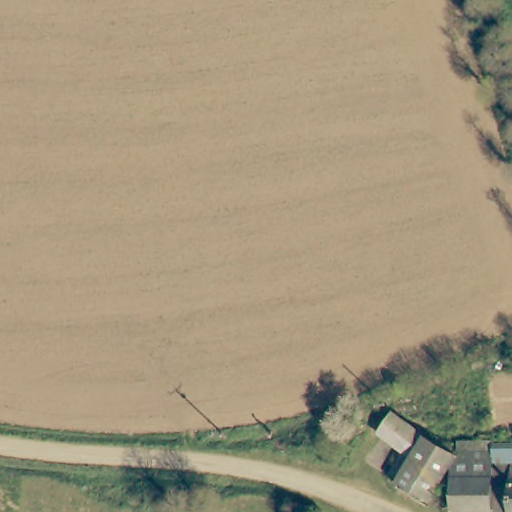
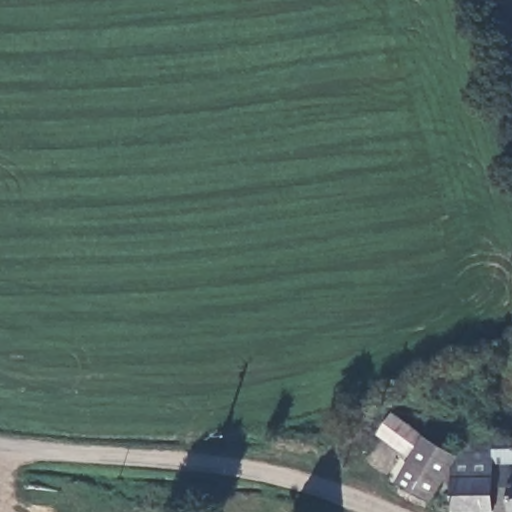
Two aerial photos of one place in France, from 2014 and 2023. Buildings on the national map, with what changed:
unchanged [(452,456),(453,463),(453,471),(433,506),(396,485),(410,459),(376,435),(393,412),(452,451),(452,456)]
unchanged [(452,456),(453,448),(456,441),(457,440),(473,442),(473,449),(494,449),(494,458),(505,459),(509,459),(512,512),(456,512),(455,484),(453,463),(452,456)]
unchanged [(494,443),(512,443),(512,459),(509,459),(494,458),(494,449),(494,443)]
unchanged [(512,459),(512,512),(509,459),(512,459)]

